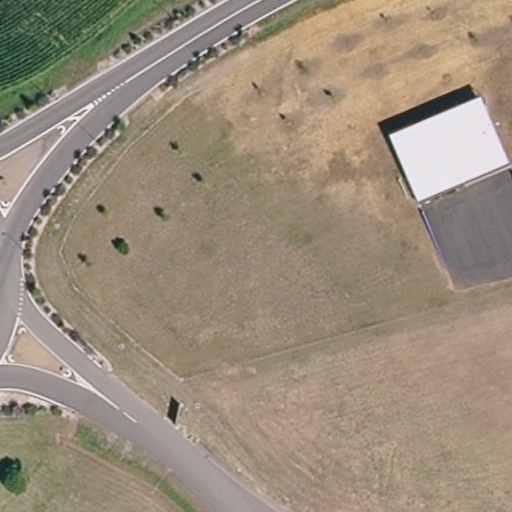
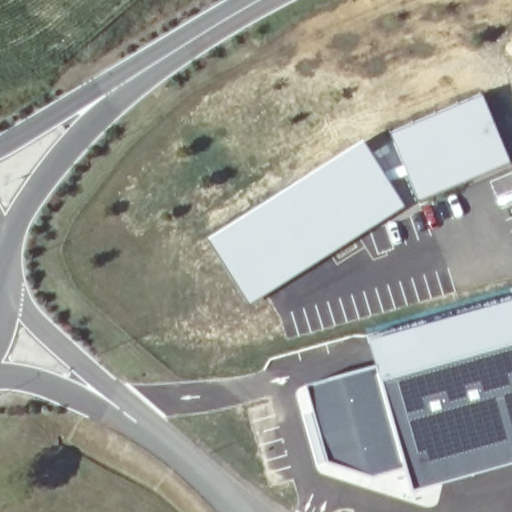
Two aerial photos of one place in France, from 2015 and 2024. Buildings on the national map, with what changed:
unchanged [(480,96),(508,162),(419,201),(391,135),(480,96)]
new [(364,141),(406,208),(249,307),(207,240),(364,141)]
new [(512,464),(412,492),(405,470),(374,365),(366,337),(512,296),(512,464)]
new [(374,365),(405,470),(372,479),(329,466),(323,465),(302,387),(374,365)]

